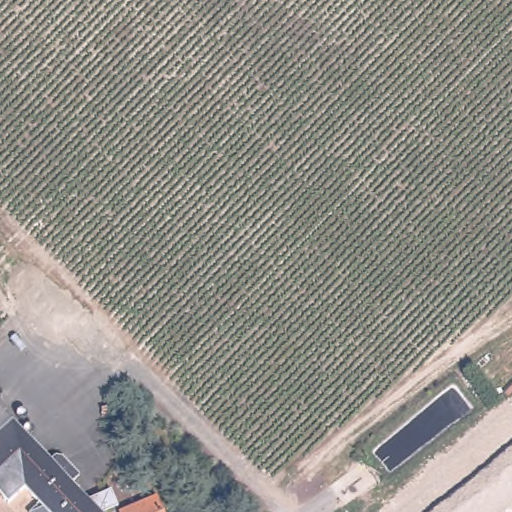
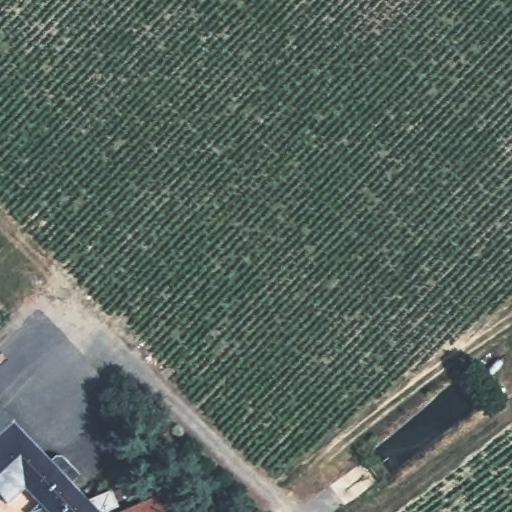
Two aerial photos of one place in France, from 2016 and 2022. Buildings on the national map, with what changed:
unchanged [(12,420),(0,432),(0,407),(12,420)]
unchanged [(12,420),(90,501),(114,490),(121,507),(108,512),(29,512),(39,502),(25,488),(10,502),(1,493),(0,494),(0,432),(12,420)]
unchanged [(159,498),(165,512),(127,512),(159,498)]

